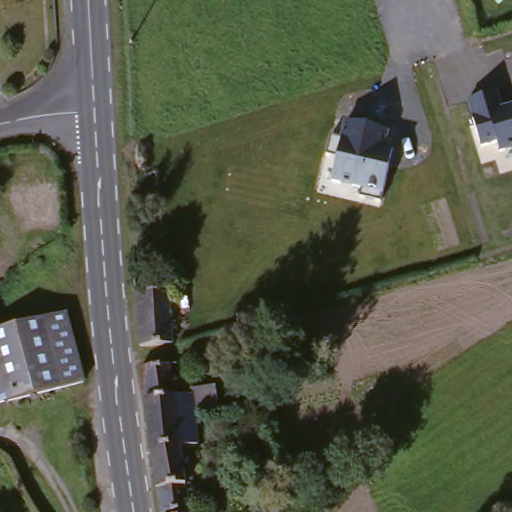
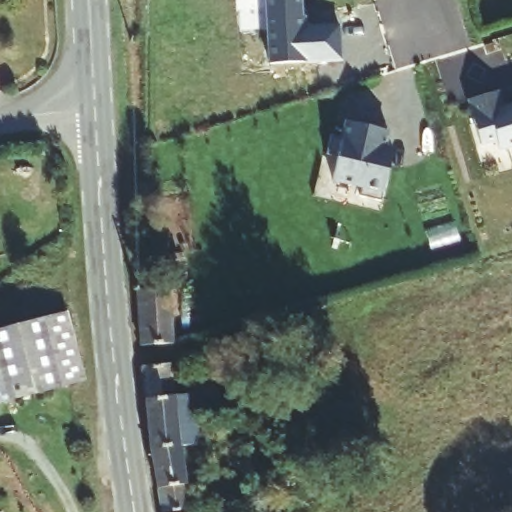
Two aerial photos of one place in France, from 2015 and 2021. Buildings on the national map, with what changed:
new [(346,28),(347,62),(276,66),(273,0),(307,0),(308,30),(346,28)]
unchanged [(501,150),(497,141),(482,146),(470,98),(497,91),(502,110),(512,107),(512,148),(501,150)]
unchanged [(359,197),(361,188),(333,182),(336,158),(326,156),(331,136),(340,138),(344,120),(386,128),(383,146),(394,149),(384,199),(359,197)]
unchanged [(163,294),(171,358),(156,360),(136,363),(130,298),(163,294)]
unchanged [(70,335),(60,339),(73,370),(73,384),(0,413),(0,335),(66,308),(70,335)]
unchanged [(171,358),(173,372),(163,373),(166,402),(188,399),(191,399),(209,397),(213,424),(191,426),(194,452),(181,454),(188,512),(155,512),(146,456),(136,367),(136,363),(156,360),(171,358)]

